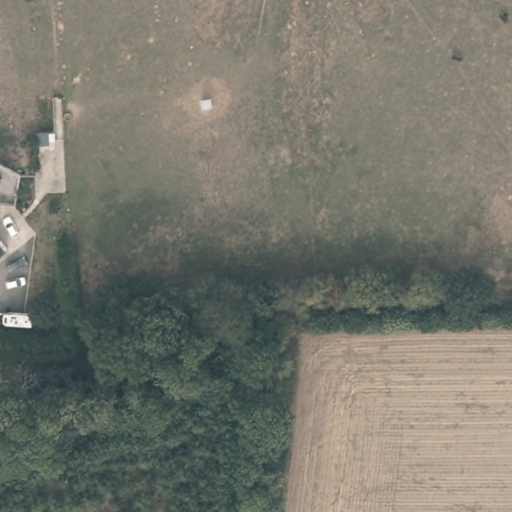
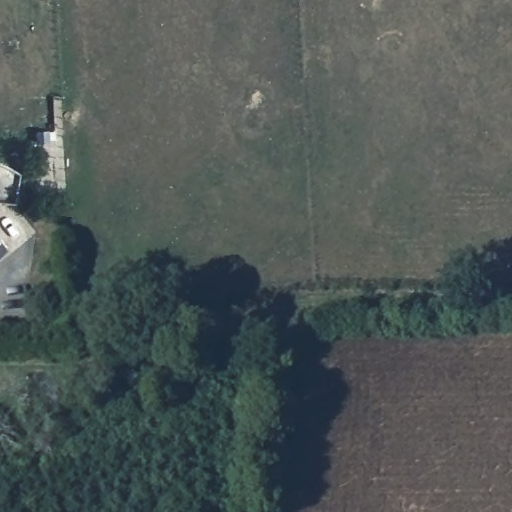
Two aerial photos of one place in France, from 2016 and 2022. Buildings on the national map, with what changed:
unchanged [(8,240),(0,245),(0,229),(8,240)]

